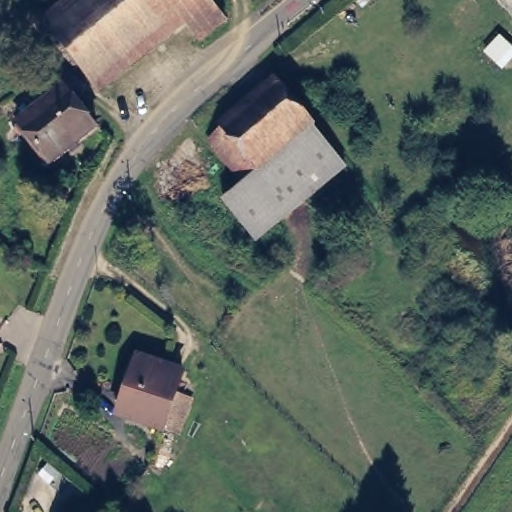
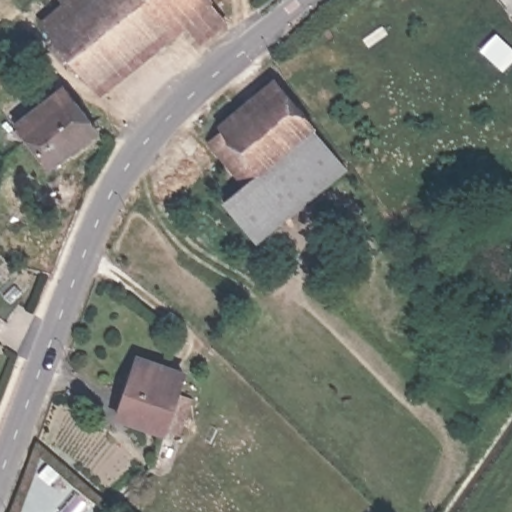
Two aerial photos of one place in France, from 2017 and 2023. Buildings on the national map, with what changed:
unchanged [(73,17),(60,0),(61,0),(196,0),(181,11),(93,85),(50,36),(73,17)]
unchanged [(181,11),(196,0),(213,0),(233,22),(207,43),(181,11)]
unchanged [(222,202),(240,189),(204,146),(223,131),(218,122),(272,78),(351,170),(258,248),(222,202)]
unchanged [(30,105),(42,120),(70,96),(101,133),(102,134),(55,174),(10,120),(30,105)]
unchanged [(158,436),(113,420),(137,362),(173,376),(179,378),(171,400),(158,436)]

